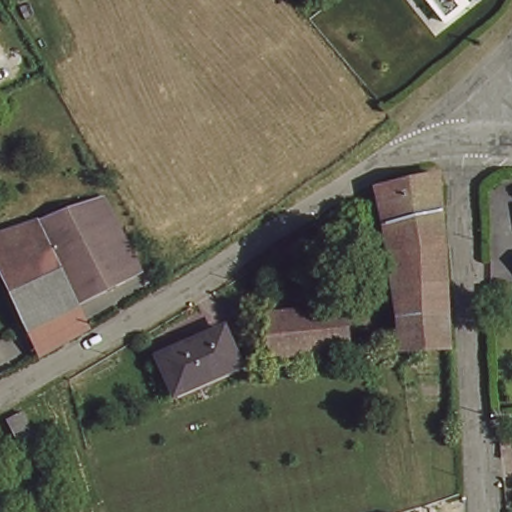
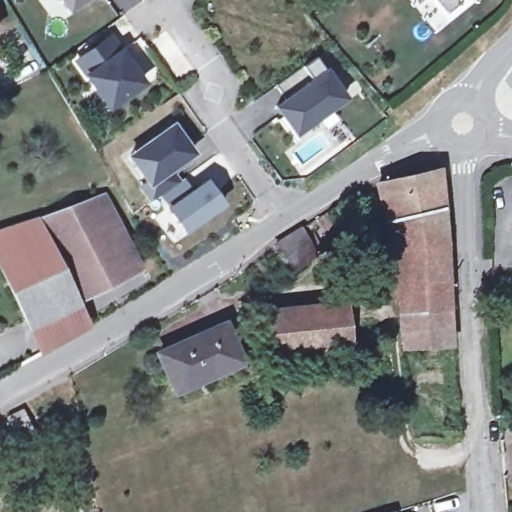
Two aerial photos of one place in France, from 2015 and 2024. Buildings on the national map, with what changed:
new [(58,0),(90,0),(69,15),(58,0)]
unchanged [(445,23),(427,0),(471,0),(473,3),(445,23)]
new [(69,63),(108,35),(116,51),(123,46),(148,81),(105,112),(82,79),(69,63)]
new [(328,68),(350,99),(295,138),(276,109),(328,68)]
new [(130,159),(170,128),(188,154),(160,173),(170,185),(145,202),(137,191),(147,185),(130,159)]
unchanged [(387,216),(383,216),(376,181),(440,166),(445,239),(440,239),(442,273),(392,269),(387,216)]
new [(211,183),(228,208),(185,239),(168,213),(211,183)]
unchanged [(99,184),(120,227),(51,262),(31,219),(99,184)]
unchanged [(31,219),(51,262),(0,288),(0,235),(31,219)]
unchanged [(120,227),(143,274),(74,310),(51,262),(120,227)]
unchanged [(293,269),(276,248),(303,232),(318,251),(293,269)]
unchanged [(51,262),(74,310),(24,336),(0,288),(51,262)]
unchanged [(445,273),(448,351),(397,338),(392,269),(442,273),(445,273)]
unchanged [(270,356),(266,314),(330,308),(345,307),(348,349),(270,356)]
unchanged [(74,310),(90,337),(40,366),(24,336),(74,310)]
unchanged [(176,388),(165,367),(158,356),(220,325),(238,358),(232,360),(176,388)]
unchanged [(27,435),(17,440),(7,421),(24,412),(33,431),(27,435)]

